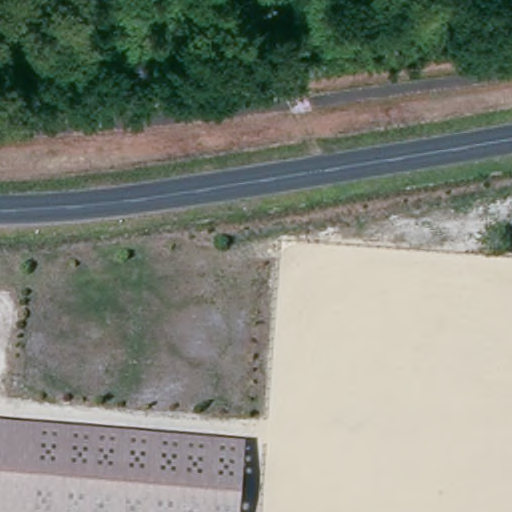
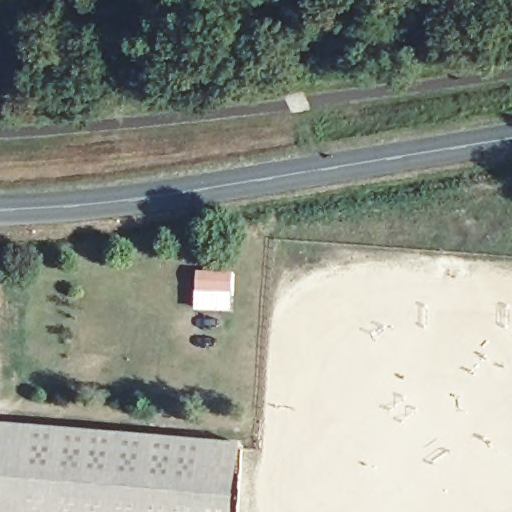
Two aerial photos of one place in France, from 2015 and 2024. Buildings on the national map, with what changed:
new [(195,271),(234,272),(232,313),(193,311),(195,271)]
unchanged [(10,512),(0,512),(0,428),(17,430),(10,512)]
unchanged [(244,449),(239,501),(238,512),(10,512),(17,430),(132,440),(244,449)]

